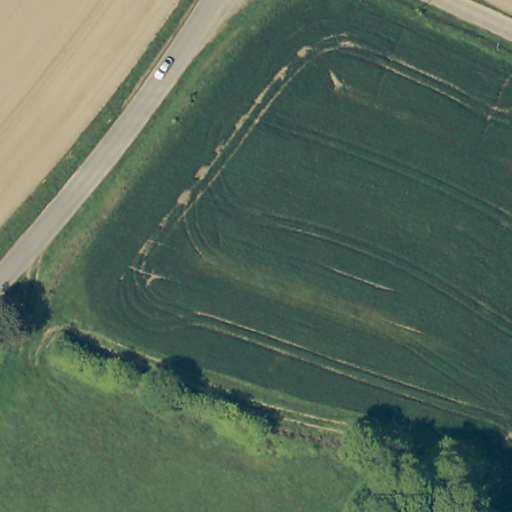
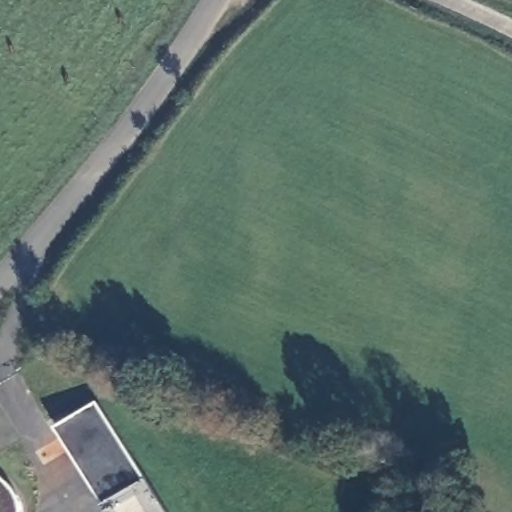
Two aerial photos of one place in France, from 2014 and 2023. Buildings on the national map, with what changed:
new [(166,512),(108,512),(57,428),(99,403),(166,512)]
new [(17,495),(22,510),(21,512),(0,512),(0,478),(17,495)]

